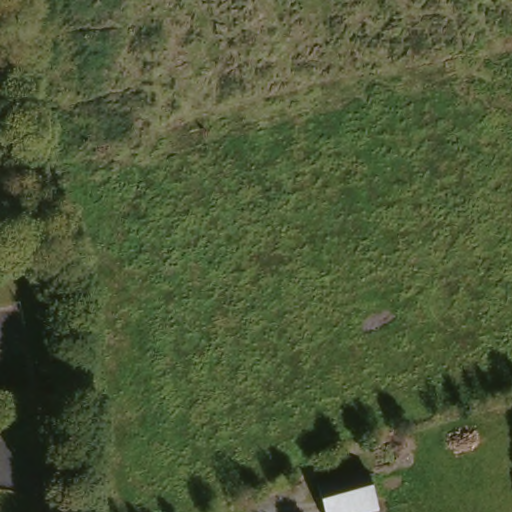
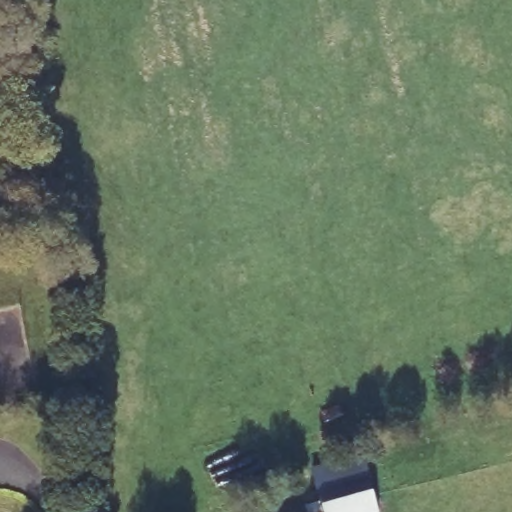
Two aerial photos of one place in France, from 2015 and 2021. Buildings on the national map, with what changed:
unchanged [(366,475),(377,512),(322,512),(315,491),(366,475)]

